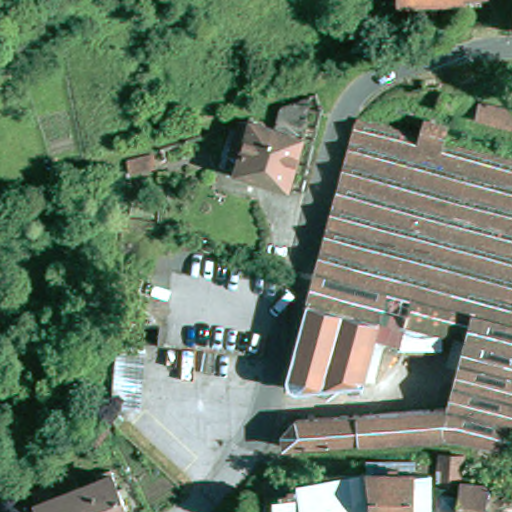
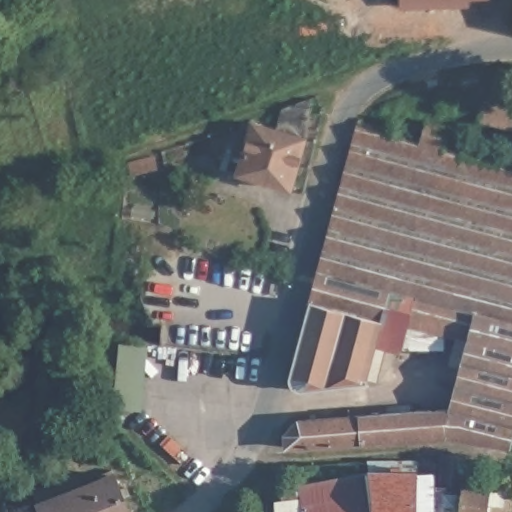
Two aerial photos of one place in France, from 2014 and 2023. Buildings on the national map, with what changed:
unchanged [(398,4),(398,0),(465,0),(465,3),(398,4)]
unchanged [(237,170),(244,153),(234,149),(244,123),(254,120),(257,121),(277,128),(282,109),(311,99),(305,138),(285,187),(237,170)]
unchanged [(438,99),(455,104),(450,122),(433,118),(438,99)]
unchanged [(505,136),(489,132),(475,129),(480,112),(495,116),(510,120),(512,121),(512,138),(505,136)]
unchanged [(507,451),(496,449),(481,447),(465,445),(424,444),(288,452),(288,435),(302,422),(451,413),(477,327),(466,323),(467,317),(418,302),(415,315),(455,328),(448,352),(382,333),(367,385),(310,392),(299,389),(291,383),(306,333),(363,121),(426,139),(430,124),(452,131),(448,146),(512,164),(512,433),(507,451)]
unchanged [(150,162),(154,172),(130,180),(125,170),(150,162)]
unchanged [(108,406),(116,340),(151,345),(142,411),(108,406)]
unchanged [(112,438),(95,457),(75,439),(92,420),(112,438)]
unchanged [(438,452),(471,456),(467,489),(460,488),(461,485),(435,484),(438,452)]
unchanged [(413,470),(430,470),(432,498),(436,499),(437,512),(370,512),(363,479),(363,468),(413,470)]
unchanged [(305,491),(363,479),(370,512),(275,512),(298,496),(305,491)]
unchanged [(43,503),(82,491),(87,503),(106,497),(103,489),(120,483),(123,491),(131,512),(46,512),(43,503)]
unchanged [(467,489),(488,491),(488,512),(459,512),(460,488),(467,489)]

